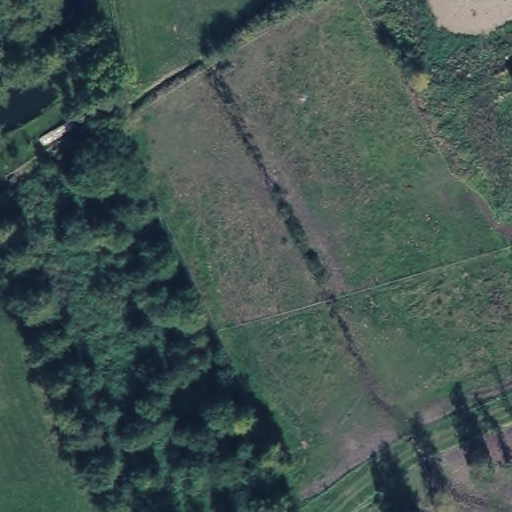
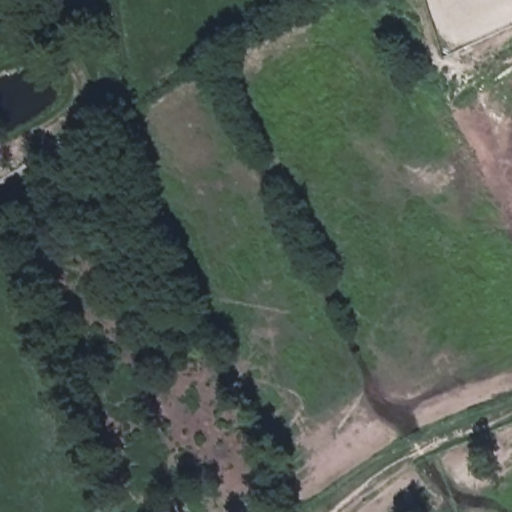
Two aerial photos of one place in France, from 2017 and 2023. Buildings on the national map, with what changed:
unchanged [(512,78),(512,86),(509,79),(512,78)]
unchanged [(168,393),(155,399),(150,387),(163,382),(168,393)]

